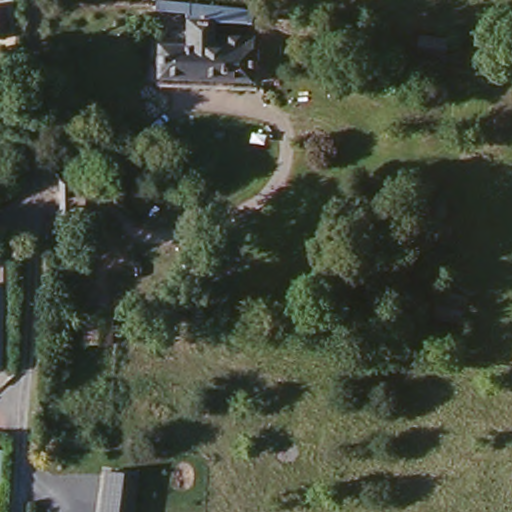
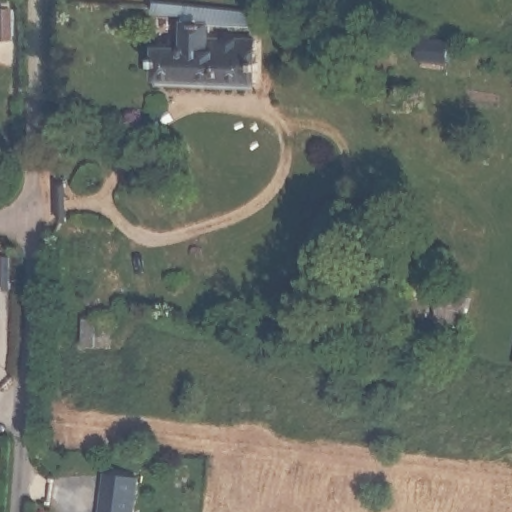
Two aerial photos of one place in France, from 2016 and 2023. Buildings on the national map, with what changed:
unchanged [(210,27),(209,43),(253,45),(253,57),(258,58),(257,68),(253,68),(251,78),(152,74),(154,62),(150,62),(150,54),(152,54),(153,42),(182,42),(182,10),(153,7),(155,0),(161,0),(255,8),(253,22),(210,27)]
unchanged [(1,32),(0,32),(0,3),(3,3),(1,32)]
unchanged [(450,44),(444,67),(416,64),(421,39),(450,44)]
unchanged [(467,299),(461,325),(434,317),(442,292),(467,299)]
unchanged [(112,318),(111,351),(78,350),(80,316),(112,318)]
unchanged [(140,477),(135,512),(98,512),(103,471),(140,477)]

